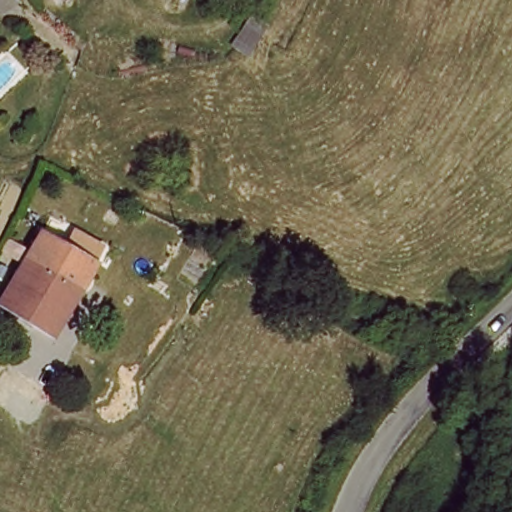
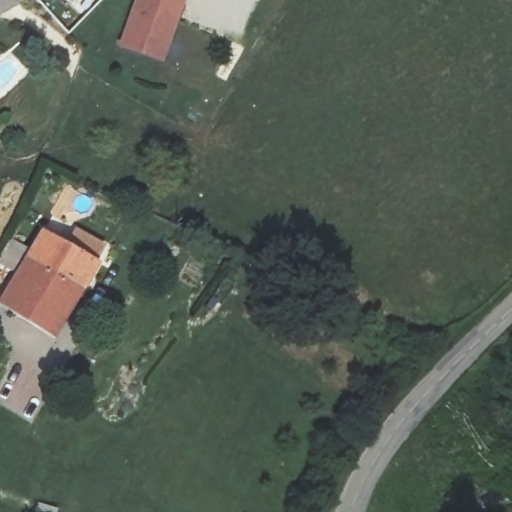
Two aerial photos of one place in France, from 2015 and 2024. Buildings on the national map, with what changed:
unchanged [(64,3),(61,0),(68,0),(64,3)]
new [(162,61),(119,47),(136,0),(185,0),(162,61)]
unchanged [(35,332),(0,312),(0,308),(39,242),(62,255),(70,242),(100,256),(70,311),(53,342),(35,332)]

